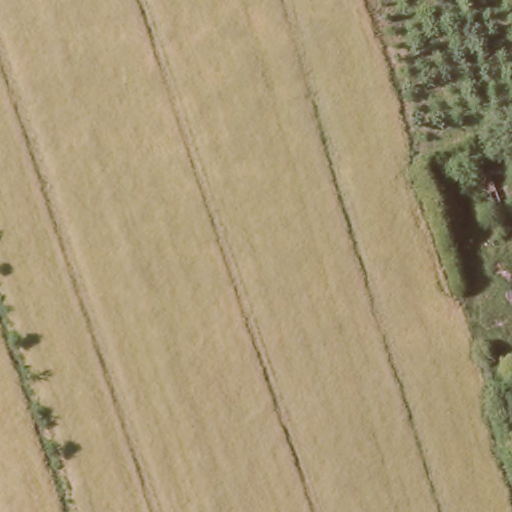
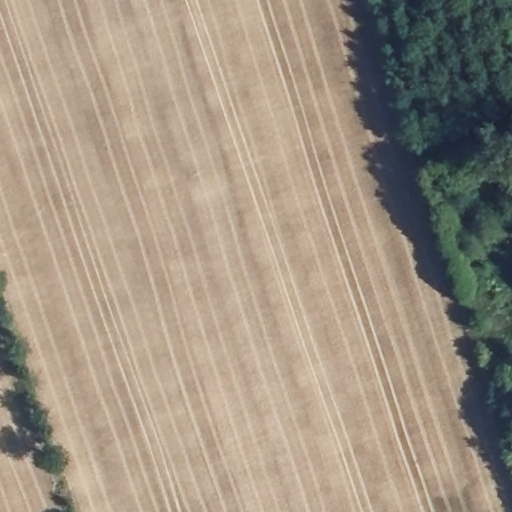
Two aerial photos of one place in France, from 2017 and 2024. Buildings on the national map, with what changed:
unchanged [(469,189),(512,169),(512,211),(485,224),(469,189)]

